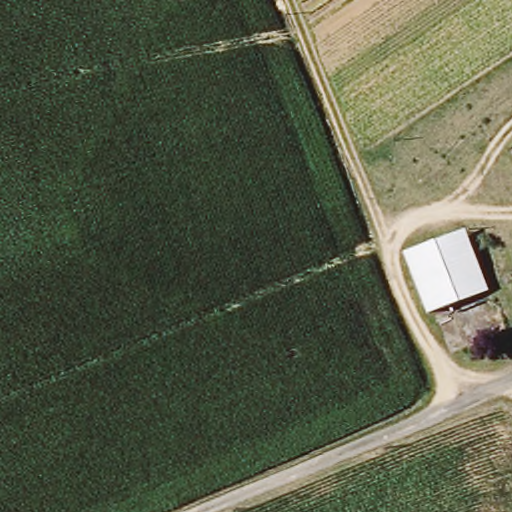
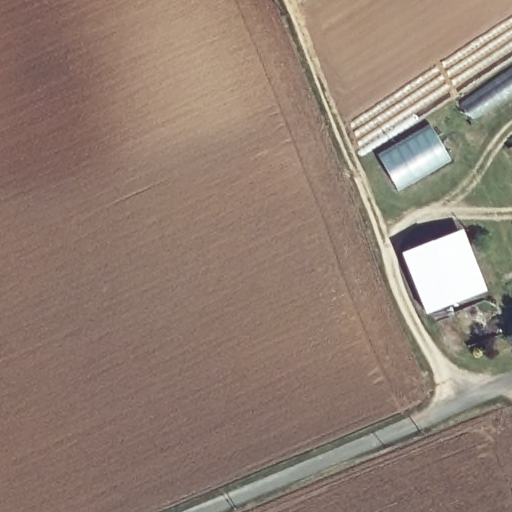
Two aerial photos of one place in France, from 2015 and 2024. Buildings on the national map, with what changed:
new [(429,123),(452,160),(397,192),(375,154),(429,123)]
unchanged [(425,309),(407,250),(462,232),(480,279),(482,290),(450,300),(425,309)]

